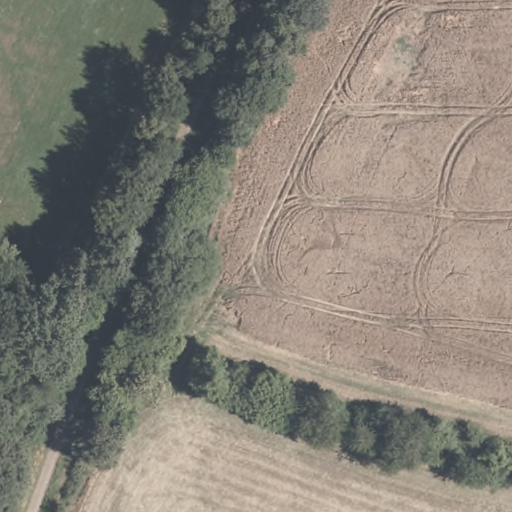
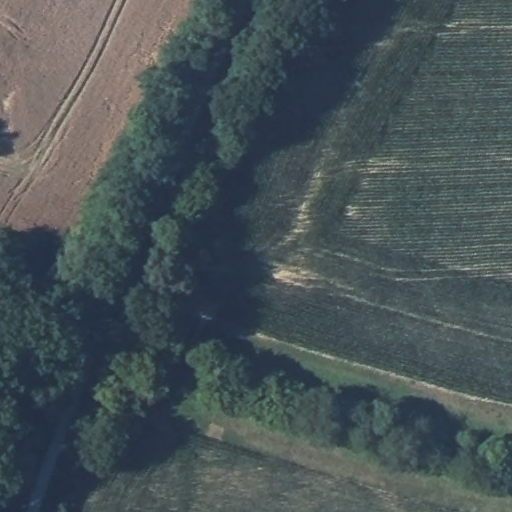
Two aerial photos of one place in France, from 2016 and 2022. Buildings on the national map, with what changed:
[]

